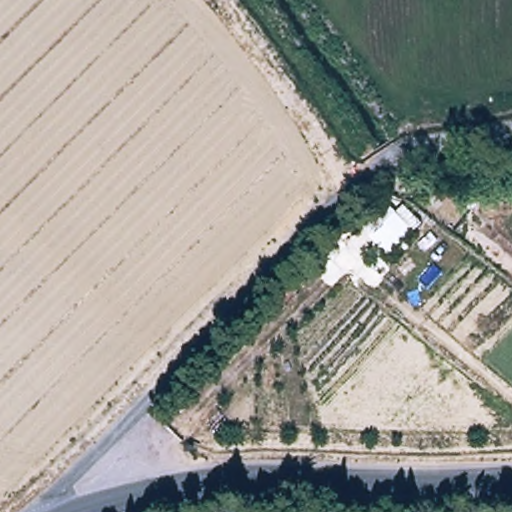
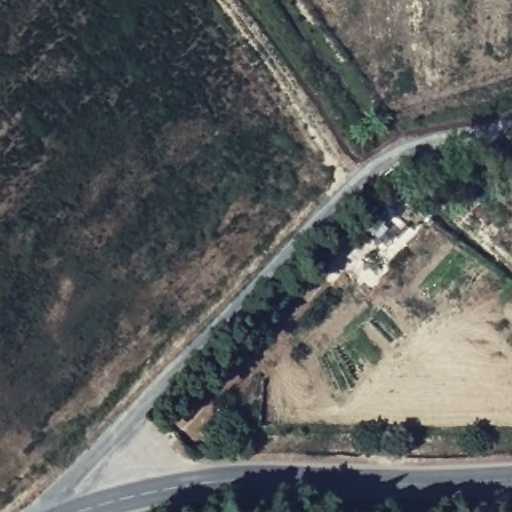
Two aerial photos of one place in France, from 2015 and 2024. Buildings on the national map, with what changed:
[]

